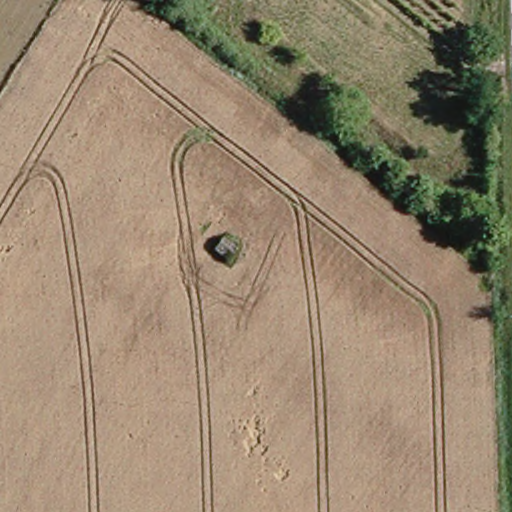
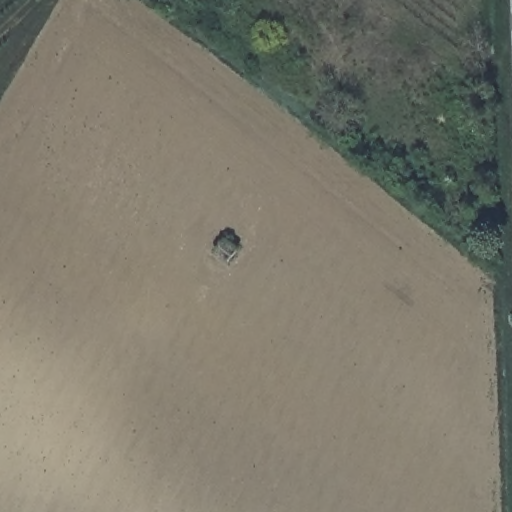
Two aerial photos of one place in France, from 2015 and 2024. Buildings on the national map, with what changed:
unchanged [(244,265),(228,254),(237,237),(254,248),(244,265)]

